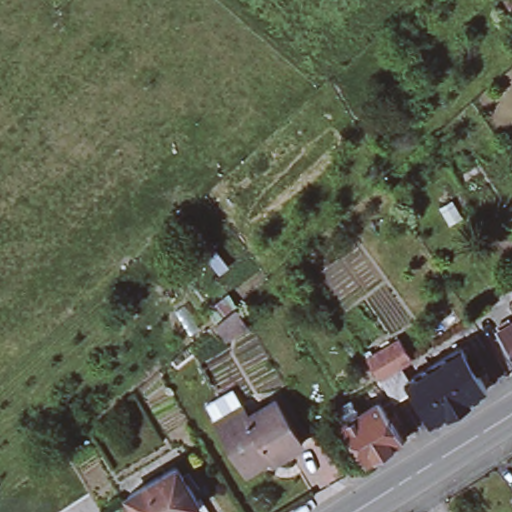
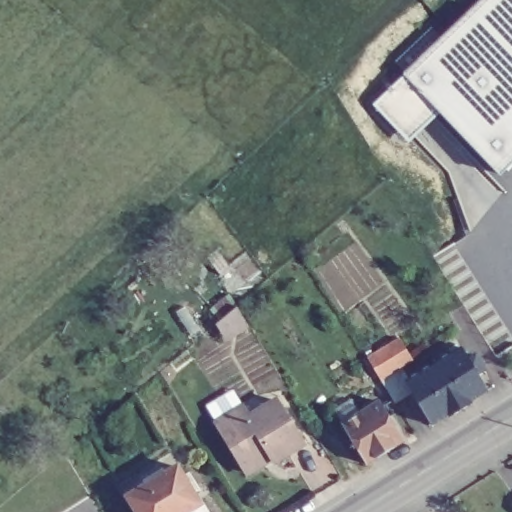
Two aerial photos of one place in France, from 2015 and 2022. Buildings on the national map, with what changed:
new [(440,111),(408,141),(374,105),(405,75),(483,0),(512,0),(512,162),(500,173),(440,111)]
demolished [(503,0),(512,0),(512,10),(503,0)]
demolished [(452,200),(462,217),(449,225),(439,208),(452,200)]
unchanged [(236,306),(244,322),(224,334),(217,322),(236,306)]
demolished [(499,337),(497,333),(509,325),(512,329),(512,357),(499,337)]
unchanged [(379,401),(369,385),(380,379),(378,376),(366,383),(356,364),(366,358),(399,338),(412,360),(401,367),(409,379),(461,347),(468,359),(474,355),(481,364),(474,368),(487,390),(470,400),(472,403),(449,416),(448,414),(431,424),(414,435),(394,403),(384,409),(404,441),(366,464),(341,425),(333,410),(351,399),(359,413),(379,401)]
unchanged [(248,421),(276,405),(303,449),(274,467),(272,463),(247,478),(216,427),(243,411),(248,421)]
unchanged [(135,512),(123,491),(171,461),(193,496),(195,494),(206,512),(135,512)]

